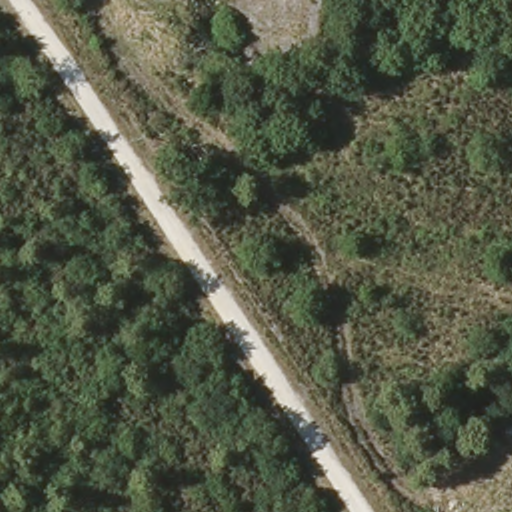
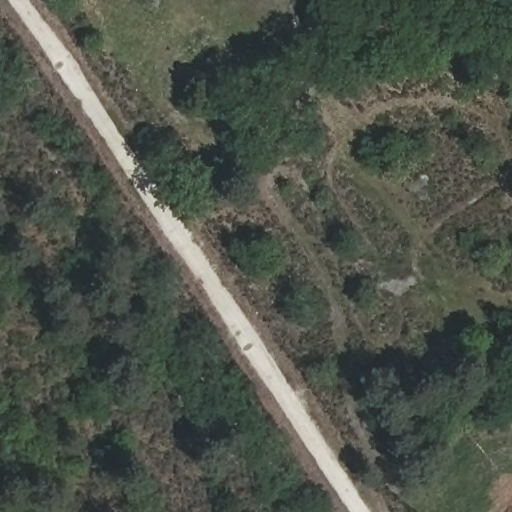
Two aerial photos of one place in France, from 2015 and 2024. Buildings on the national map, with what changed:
[]

